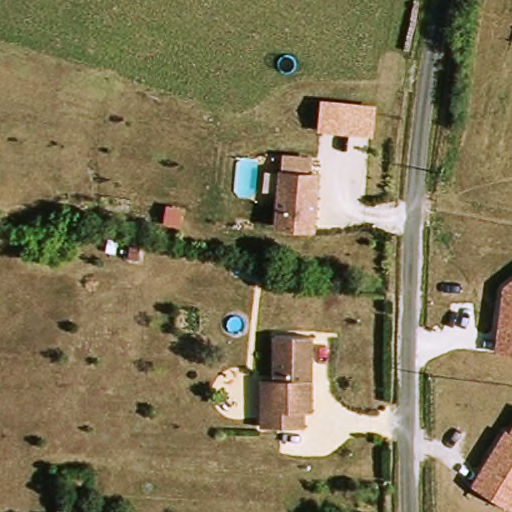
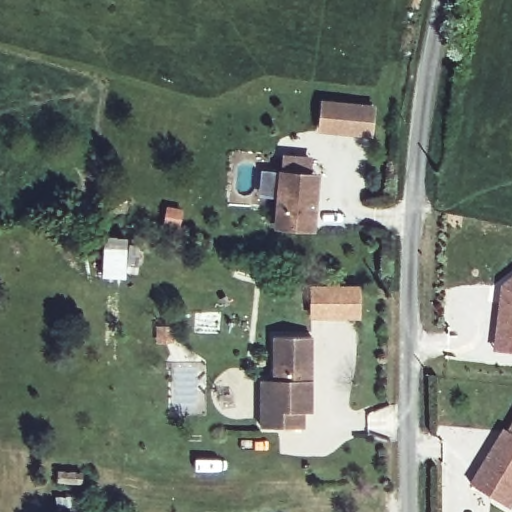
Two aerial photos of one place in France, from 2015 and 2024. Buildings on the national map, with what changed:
unchanged [(375,105),(372,137),(316,131),(320,100),(375,105)]
unchanged [(305,229),(267,225),(275,170),(277,155),(305,159),(302,173),(312,175),(305,229)]
unchanged [(502,286),(512,277),(512,354),(496,352),(502,286)]
new [(362,319),(310,318),(312,285),(360,285),(362,319)]
unchanged [(283,384),(283,341),(322,341),(322,376),(322,385),(322,417),(313,417),(313,432),(270,432),(270,415),(270,385),(283,384)]
unchanged [(507,512),(469,486),(505,427),(510,430),(512,426),(512,508),(510,512),(507,512)]
unchanged [(62,470),(91,471),(89,491),(62,487),(62,470)]

